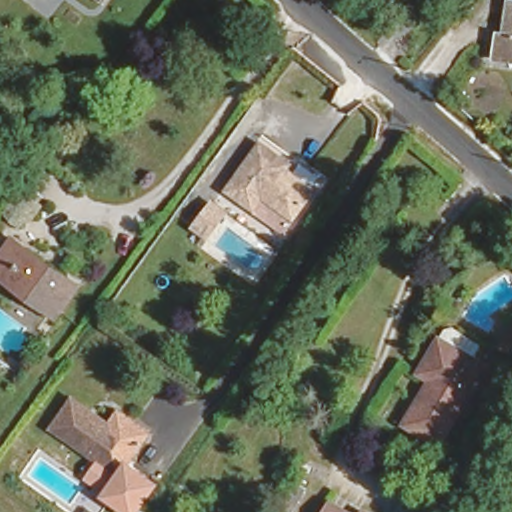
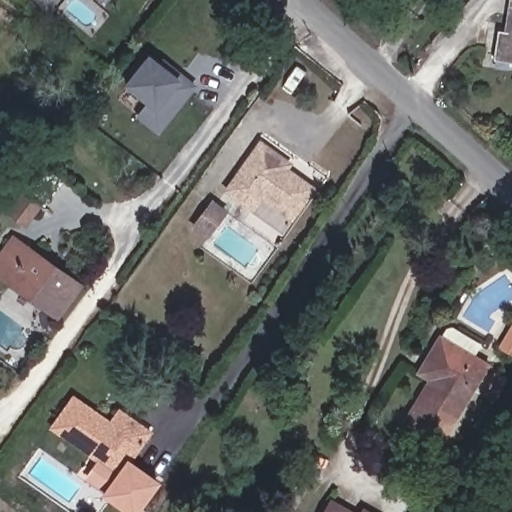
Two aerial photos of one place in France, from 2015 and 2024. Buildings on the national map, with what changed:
unchanged [(496,28),(510,29),(512,14),(512,58),(492,56),(496,28)]
new [(160,136),(137,118),(146,102),(125,85),(149,54),(158,61),(162,58),(199,85),(160,136)]
unchanged [(279,214),(254,196),(247,209),(215,187),(263,129),(292,150),(289,156),(314,173),(279,214)]
unchanged [(28,189),(42,201),(28,221),(14,211),(28,189)]
unchanged [(59,316),(0,273),(0,245),(13,226),(64,263),(87,279),(74,296),(59,316)]
unchanged [(492,354),(444,431),(411,412),(434,372),(419,364),(427,346),(439,325),(492,354)]
unchanged [(106,417),(115,404),(146,424),(126,455),(156,474),(134,507),(104,488),(117,468),(48,425),(69,393),(106,417)]
unchanged [(357,512),(323,512),(330,498),(357,512)]
unchanged [(376,512),(361,512),(364,506),(376,512)]

